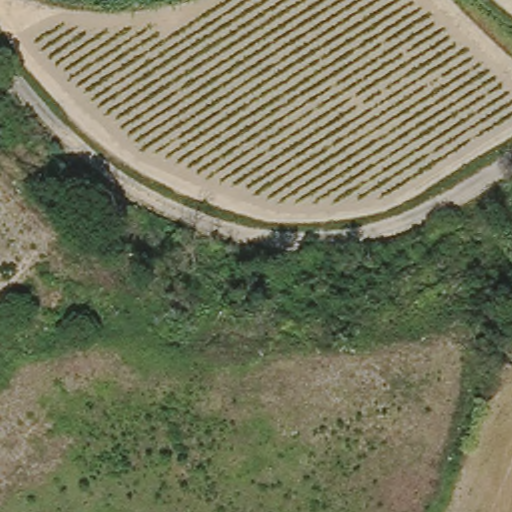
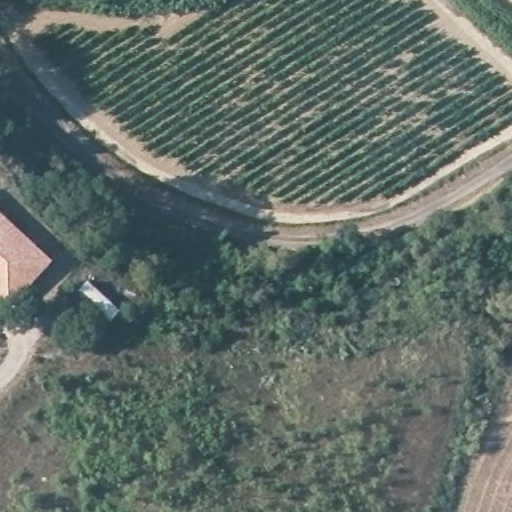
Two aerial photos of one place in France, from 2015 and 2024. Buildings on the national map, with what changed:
new [(51,262),(6,307),(0,302),(0,213),(51,262)]
new [(88,281),(121,311),(111,323),(77,293),(88,281)]

